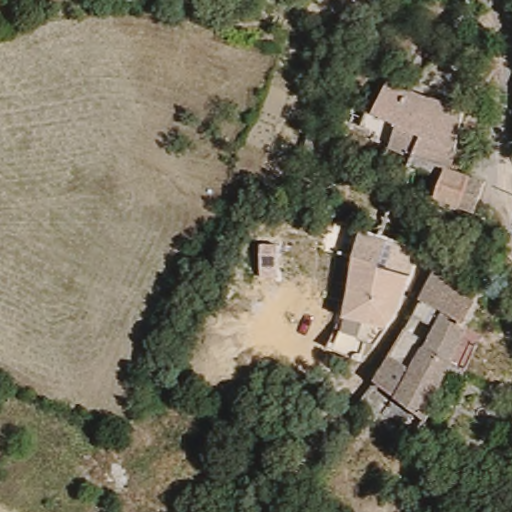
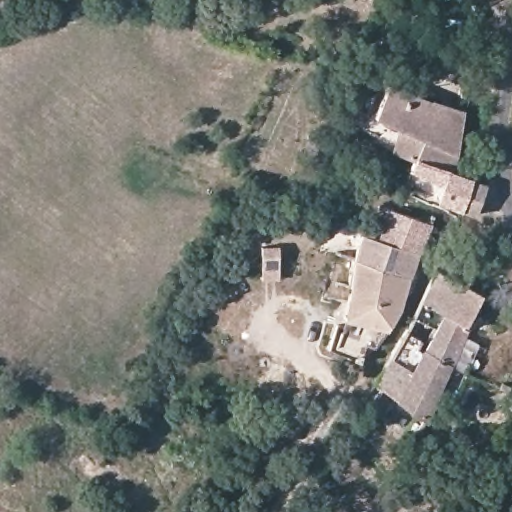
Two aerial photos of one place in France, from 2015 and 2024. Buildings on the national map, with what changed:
unchanged [(469,120),(458,170),(491,185),(478,223),(431,206),(432,176),(383,159),(388,133),(370,126),(384,87),(469,120)]
new [(432,223),(425,252),(419,249),(420,248),(406,244),(382,236),(379,235),(389,208),(432,223)]
unchanged [(411,281),(407,279),(350,260),(358,229),(382,236),(406,244),(420,248),(411,281)]
unchanged [(491,263),(488,280),(476,330),(467,353),(436,337),(408,316),(447,249),(491,263)]
unchanged [(407,279),(399,306),(382,330),(372,346),(363,344),(355,361),(327,351),(328,340),(336,342),(341,323),(350,260),(407,279)]
unchanged [(367,387),(408,316),(436,337),(407,409),(367,387)]
unchanged [(467,353),(446,400),(433,423),(407,409),(436,337),(467,353)]

